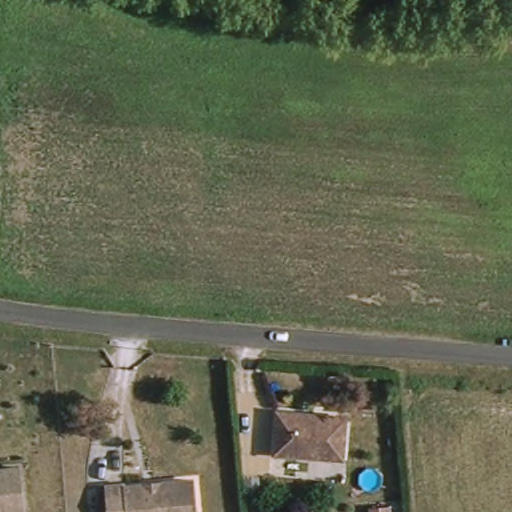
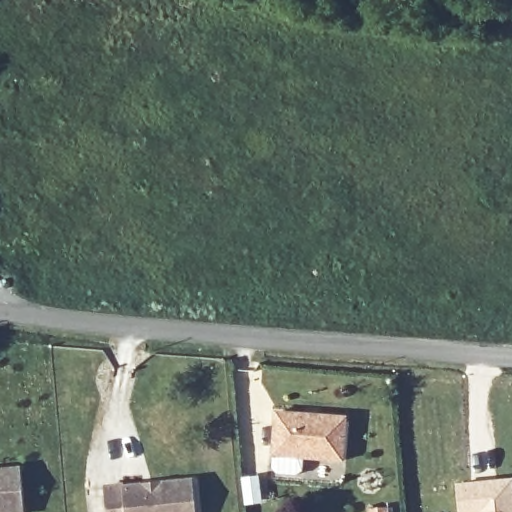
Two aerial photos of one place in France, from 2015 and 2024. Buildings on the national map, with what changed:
unchanged [(351,458),(281,454),(282,412),(353,418),(351,458)]
unchanged [(21,466),(24,512),(0,512),(0,468),(21,466)]
new [(512,512),(459,512),(456,483),(512,477),(512,512)]
unchanged [(192,486),(195,512),(104,512),(102,492),(192,486)]
new [(385,512),(369,512),(369,510),(385,509),(385,512)]

